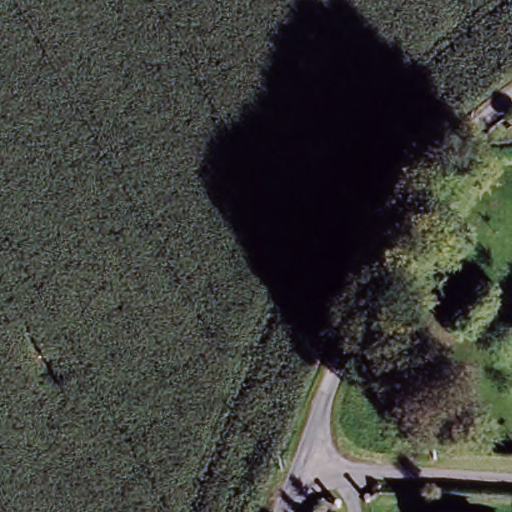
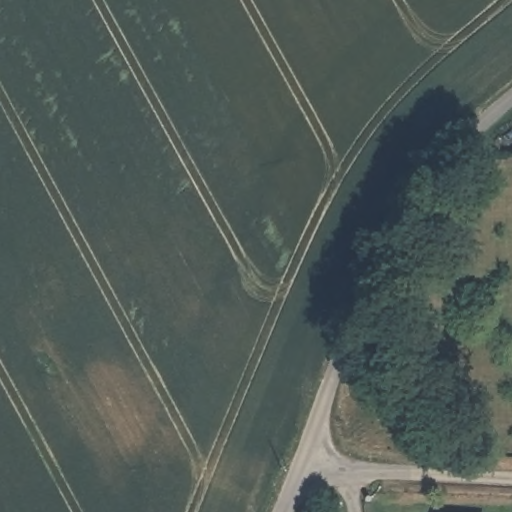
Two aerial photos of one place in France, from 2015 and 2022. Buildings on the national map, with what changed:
[]

